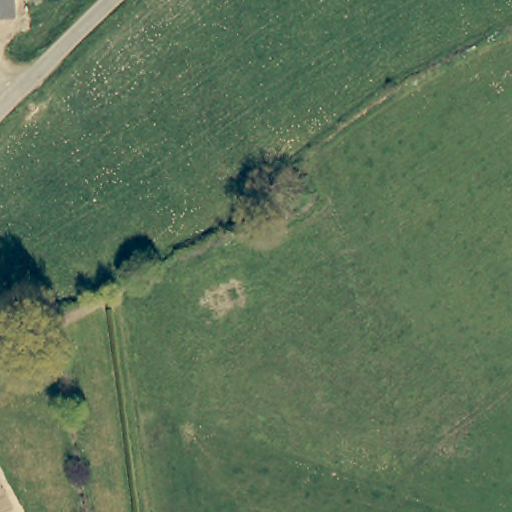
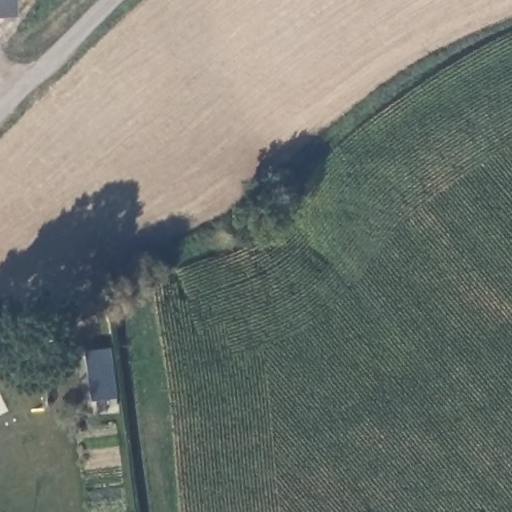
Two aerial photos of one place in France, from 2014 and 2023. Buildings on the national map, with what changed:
unchanged [(21,7),(0,10),(0,0),(20,0),(21,7)]
new [(116,399),(90,403),(84,352),(109,349),(116,399)]
demolished [(0,511),(0,505),(3,510),(0,511)]

